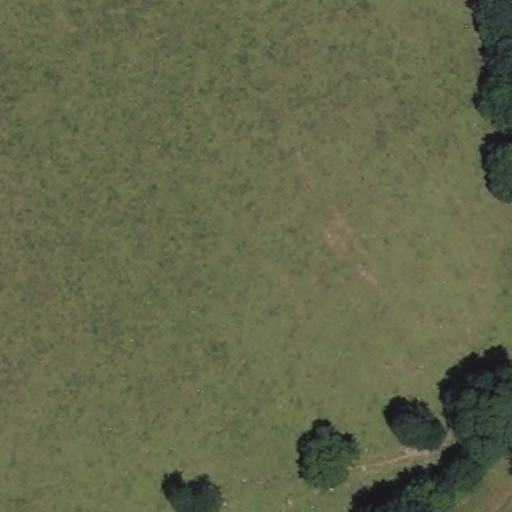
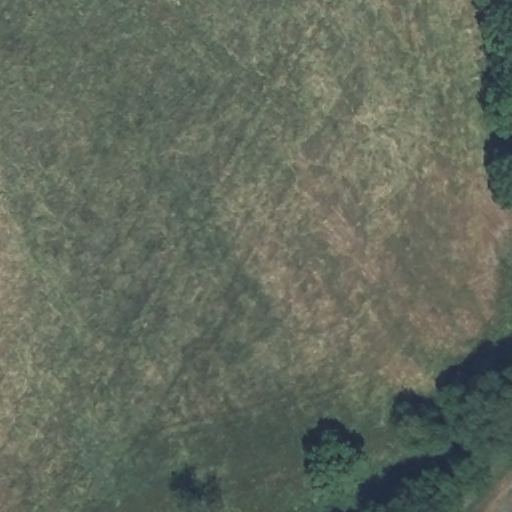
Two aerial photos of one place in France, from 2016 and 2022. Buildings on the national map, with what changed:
[]

